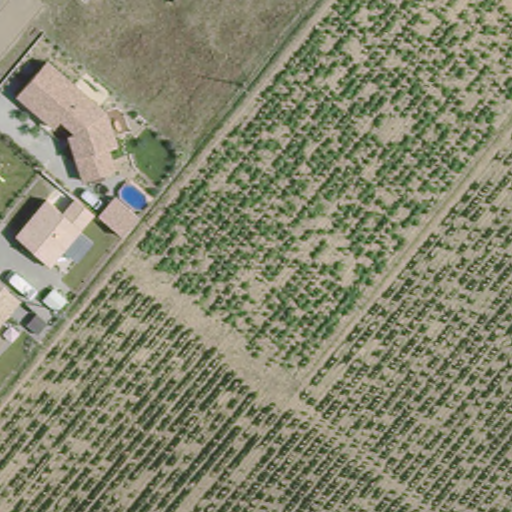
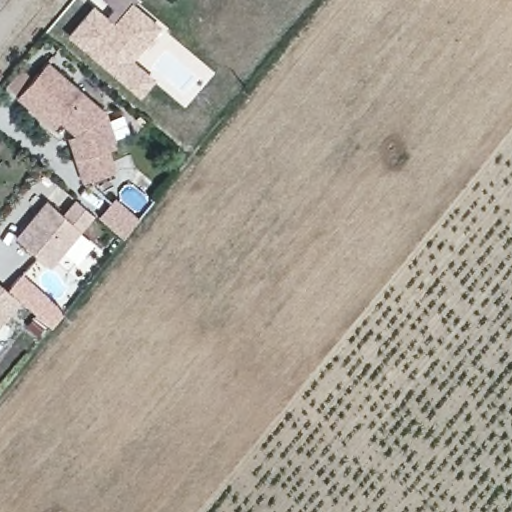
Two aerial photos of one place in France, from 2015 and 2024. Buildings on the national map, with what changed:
new [(67,34),(94,4),(107,15),(113,6),(107,0),(132,0),(131,1),(161,26),(133,58),(153,76),(140,95),(67,34)]
unchanged [(75,159),(68,136),(73,134),(58,122),(53,130),(17,98),(46,62),(106,111),(117,145),(108,148),(116,172),(83,182),(75,159)]
unchanged [(98,217),(115,198),(140,218),(123,237),(98,217)]
unchanged [(16,236),(46,200),(62,214),(74,200),(92,217),(81,231),(50,268),(16,236)]
unchanged [(0,325),(0,283),(20,301),(0,325)]

